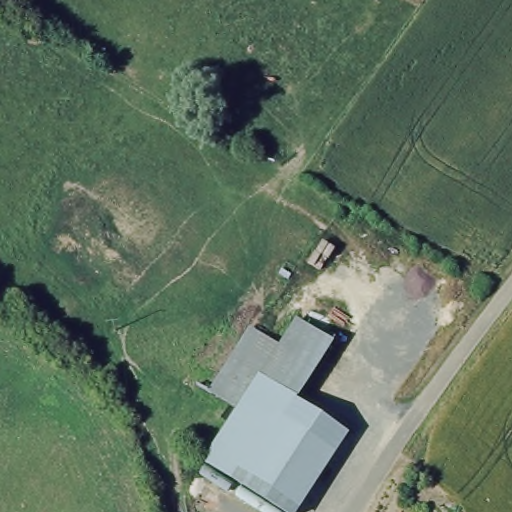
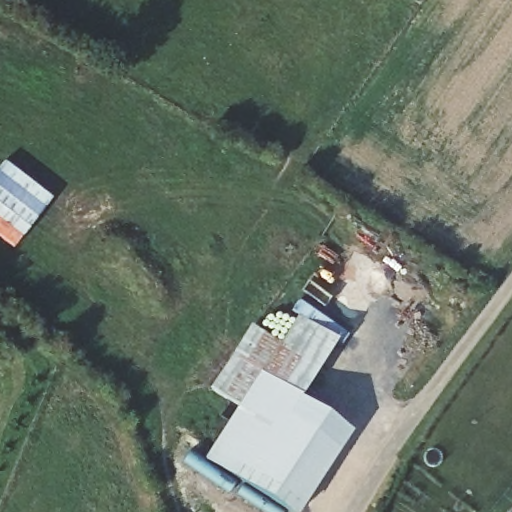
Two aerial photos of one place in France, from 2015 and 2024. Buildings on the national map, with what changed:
new [(12,248),(0,239),(0,165),(1,163),(48,199),(12,248)]
unchanged [(332,343),(296,396),(348,431),(294,512),(279,512),(205,461),(241,409),(214,388),(251,324),(281,341),(299,315),(332,343)]

